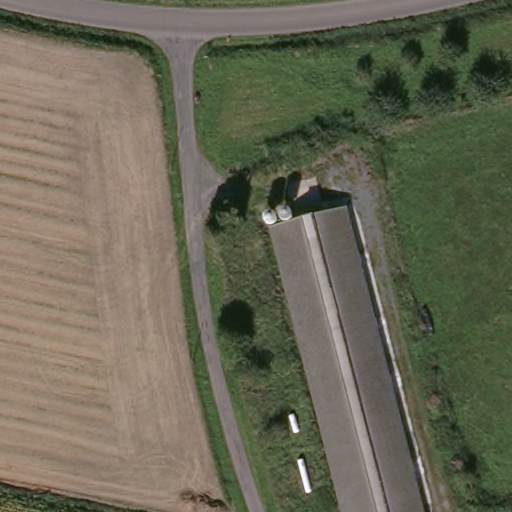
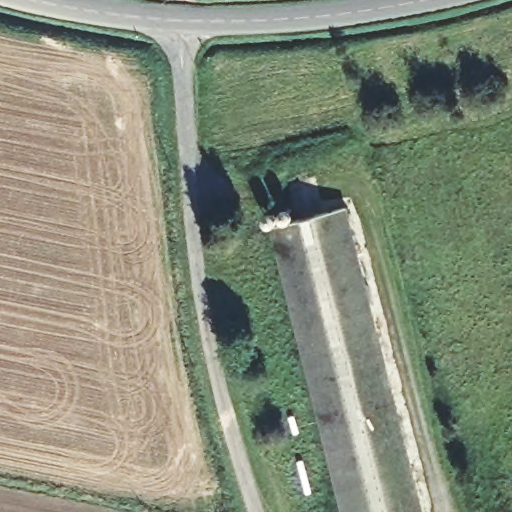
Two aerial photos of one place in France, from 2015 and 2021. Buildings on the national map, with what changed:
unchanged [(273,230),(343,214),(417,512),(342,512),(273,230)]

